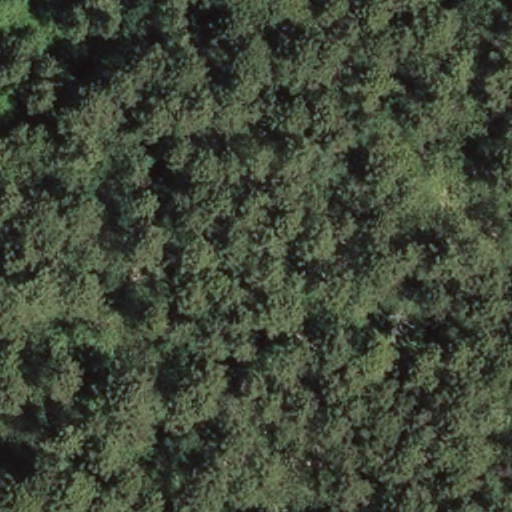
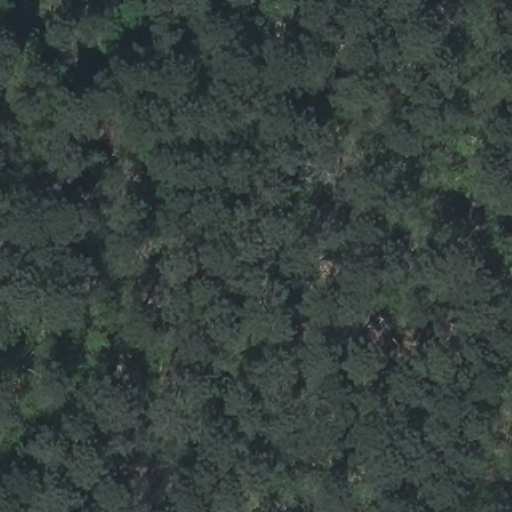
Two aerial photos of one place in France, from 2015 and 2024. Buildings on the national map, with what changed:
[]

